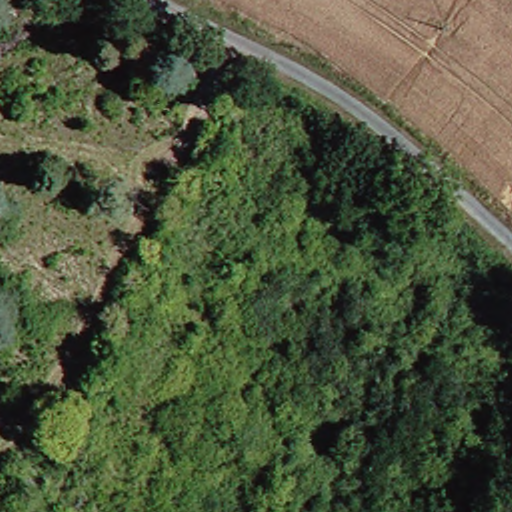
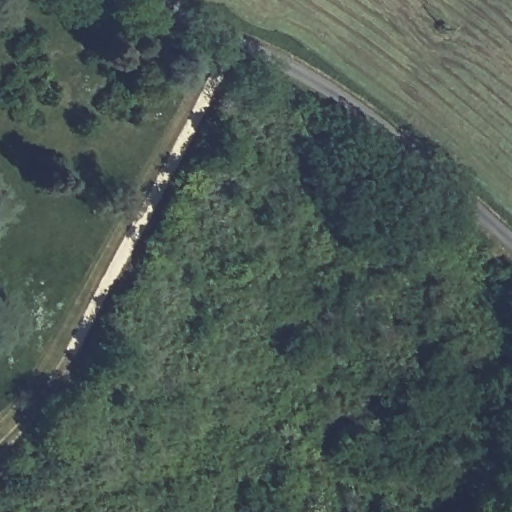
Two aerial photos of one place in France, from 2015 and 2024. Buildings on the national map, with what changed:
[]

